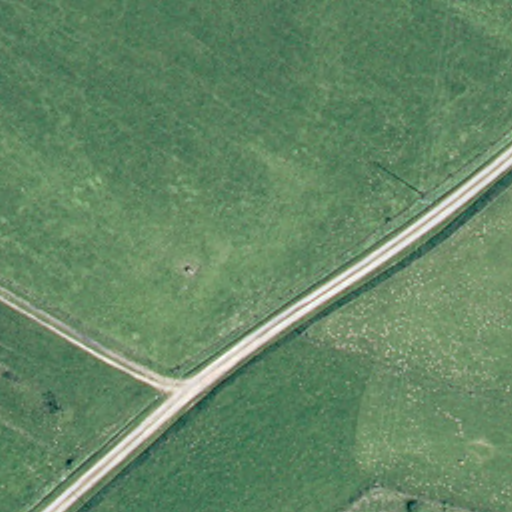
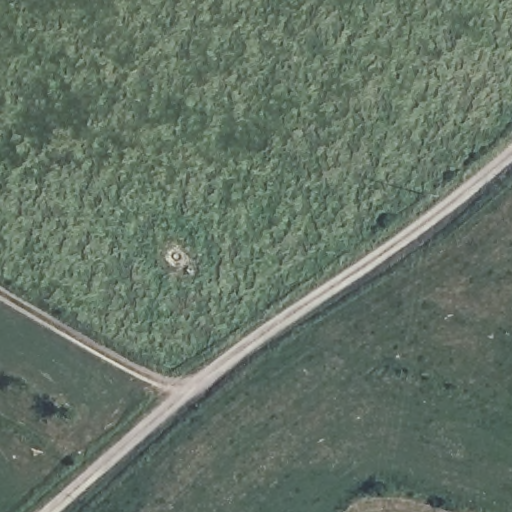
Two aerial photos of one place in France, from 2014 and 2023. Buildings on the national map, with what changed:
[]

